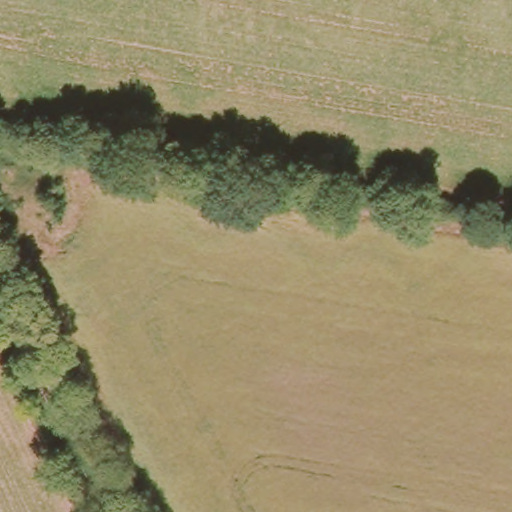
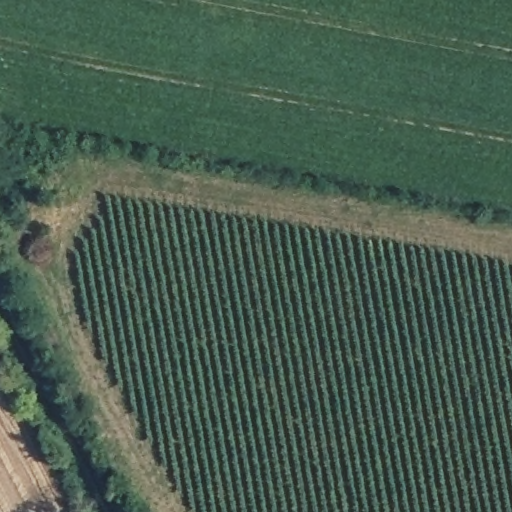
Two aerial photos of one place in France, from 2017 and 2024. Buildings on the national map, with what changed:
[]

